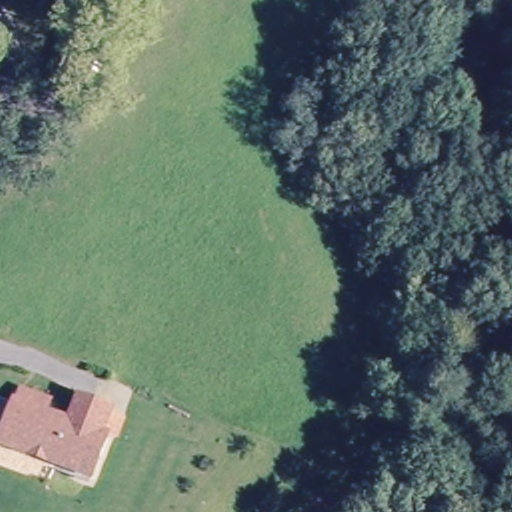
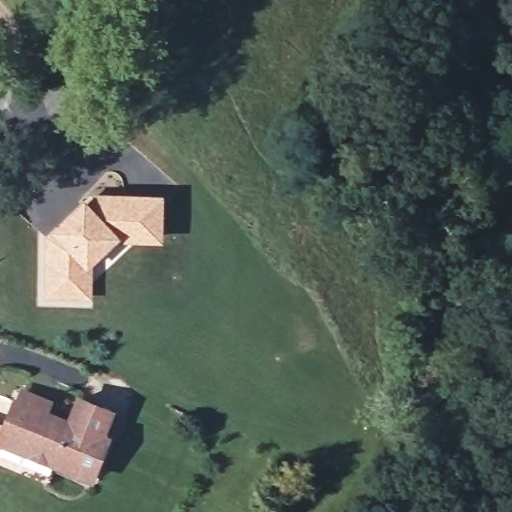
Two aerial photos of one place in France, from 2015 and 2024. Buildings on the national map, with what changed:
new [(163,241),(121,240),(93,265),(92,298),(46,296),(48,239),(53,231),(85,201),(93,194),(165,195),(163,241)]
unchanged [(92,485),(71,477),(75,470),(27,450),(24,458),(0,449),(0,447),(11,420),(15,422),(24,399),(49,409),(44,422),(70,433),(81,406),(111,418),(100,445),(107,447),(92,485)]

